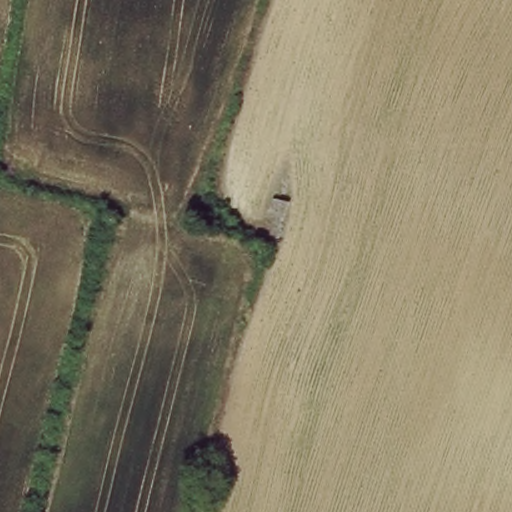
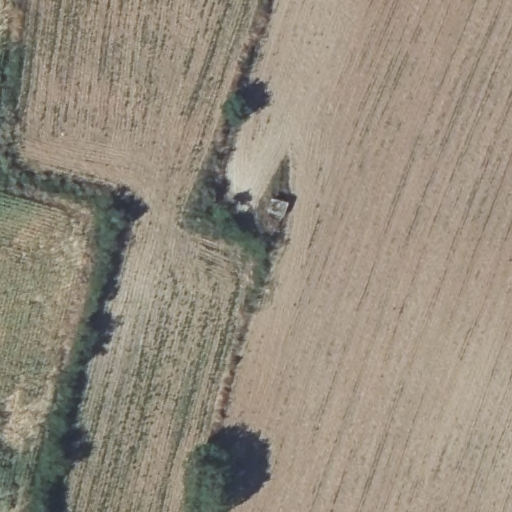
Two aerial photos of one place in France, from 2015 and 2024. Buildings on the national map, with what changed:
unchanged [(274,190),(291,199),(284,227),(267,219),(274,190)]

